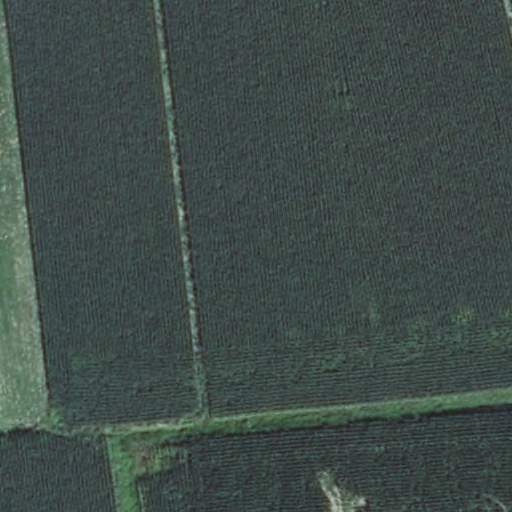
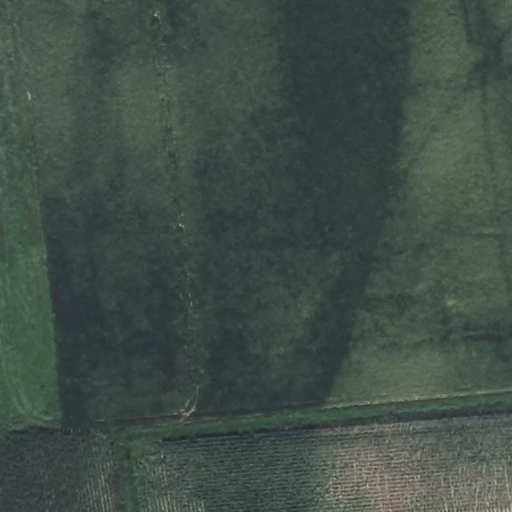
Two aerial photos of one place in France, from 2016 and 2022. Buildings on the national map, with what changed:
[]

